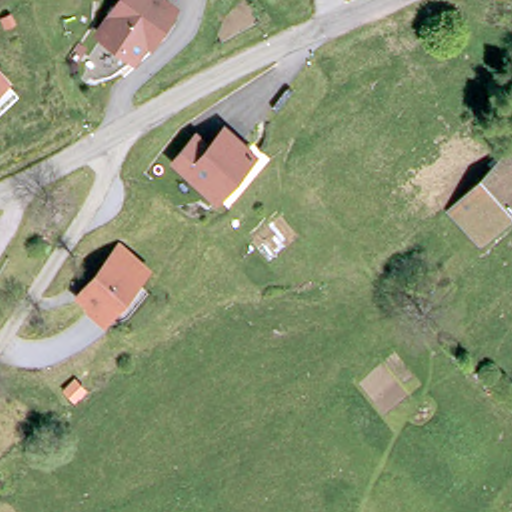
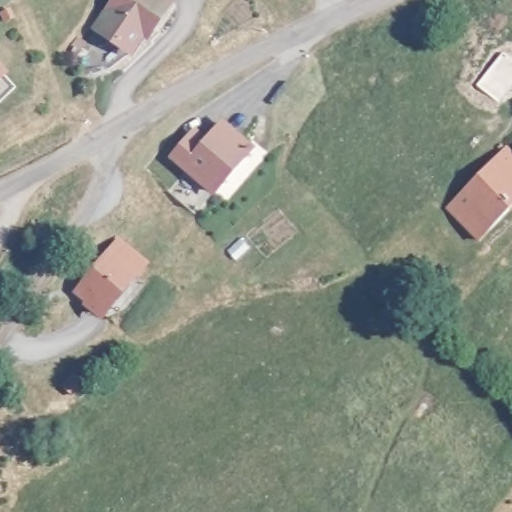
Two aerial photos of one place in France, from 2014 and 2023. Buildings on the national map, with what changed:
unchanged [(152,40),(148,37),(136,55),(102,33),(126,0),(168,0),(175,5),(152,40)]
unchanged [(0,70),(0,58),(6,65),(0,70)]
unchanged [(212,193),(169,156),(189,135),(203,145),(221,125),(250,150),(212,193)]
unchanged [(512,160),(512,218),(485,247),(455,219),(510,157),(512,160)]
unchanged [(87,276),(107,254),(132,276),(115,296),(98,314),(73,294),(87,276)]
unchanged [(60,386),(70,375),(82,385),(70,396),(60,386)]

